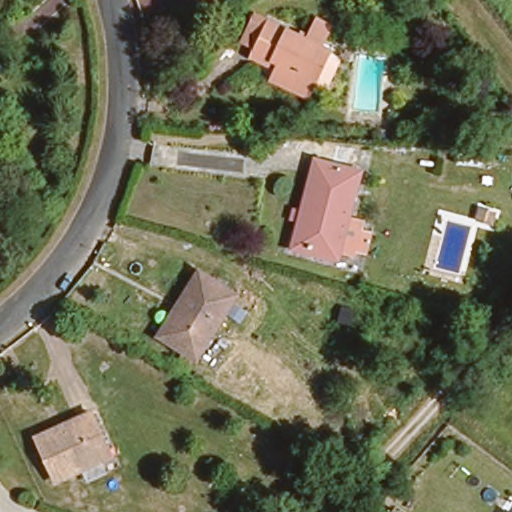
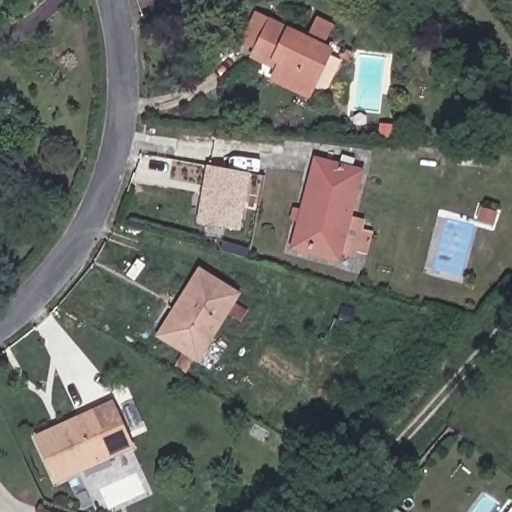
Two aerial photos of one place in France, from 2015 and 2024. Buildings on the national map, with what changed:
unchanged [(263,79),(270,70),(275,62),(246,45),(249,40),(235,32),(246,12),(260,21),(266,10),(331,48),(306,90),(300,99),(263,79)]
unchanged [(338,253),(337,255),(302,245),(293,244),(301,206),(310,161),(356,175),(347,217),(364,220),(364,227),(372,229),(368,250),(358,247),(355,256),(338,253)]
new [(241,230),(197,222),(206,165),(251,173),(241,230)]
unchanged [(181,295),(197,265),(238,288),(199,357),(167,340),(158,335),(181,295)]
unchanged [(56,494),(36,445),(27,425),(66,409),(62,404),(82,394),(115,467),(72,486),(56,494)]

